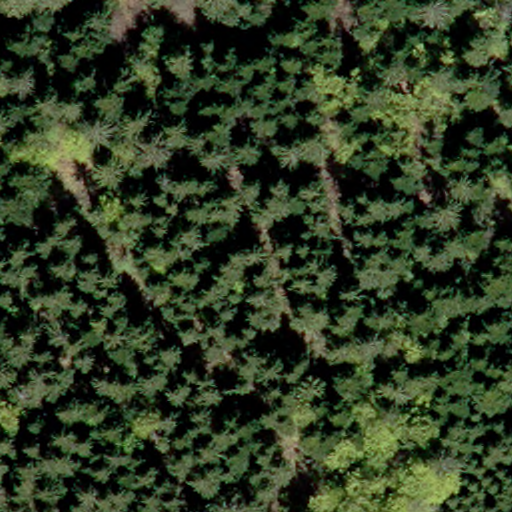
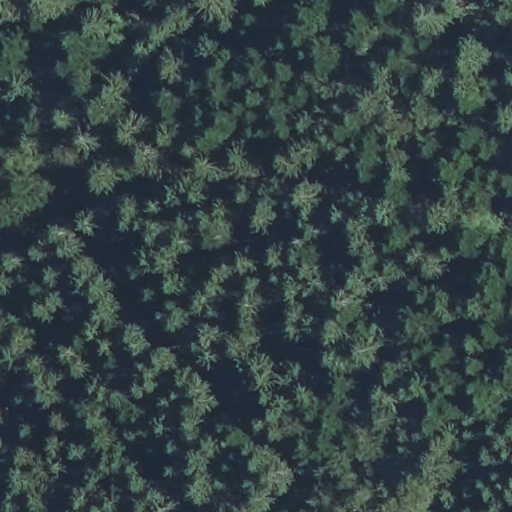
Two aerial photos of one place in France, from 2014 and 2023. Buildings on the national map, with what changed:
[]

